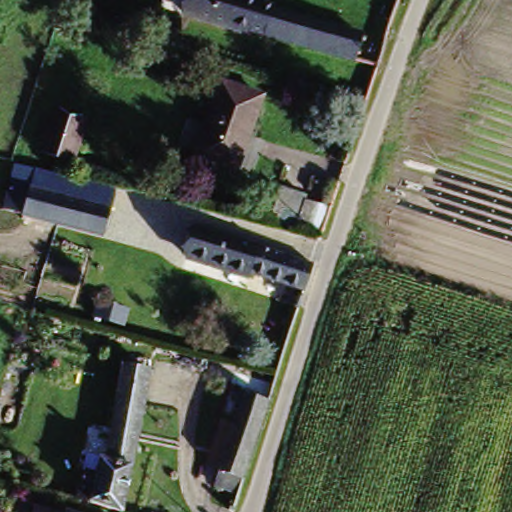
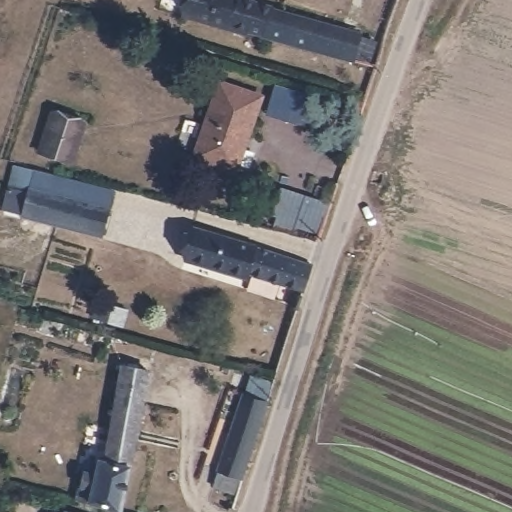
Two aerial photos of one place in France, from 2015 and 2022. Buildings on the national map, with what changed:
unchanged [(350,51),(346,60),(242,32),(242,36),(174,16),(179,0),(249,0),(354,29),(382,36),(376,58),(350,51)]
unchanged [(257,99),(232,177),(195,165),(222,88),(257,99)]
unchanged [(32,151),(47,111),(65,118),(82,125),(76,139),(67,164),(32,151)]
unchanged [(112,203),(105,226),(27,206),(32,183),(112,203)]
unchanged [(292,198),(283,223),(262,216),(270,191),(292,198)]
unchanged [(300,288),(245,271),(243,277),(181,257),(190,226),(308,265),(300,288)]
unchanged [(99,473),(132,372),(160,380),(117,512),(102,512),(79,503),(87,468),(99,473)]
unchanged [(241,480),(217,471),(242,390),(266,399),(241,480)]
unchanged [(73,512),(63,512),(64,509),(73,512)]

